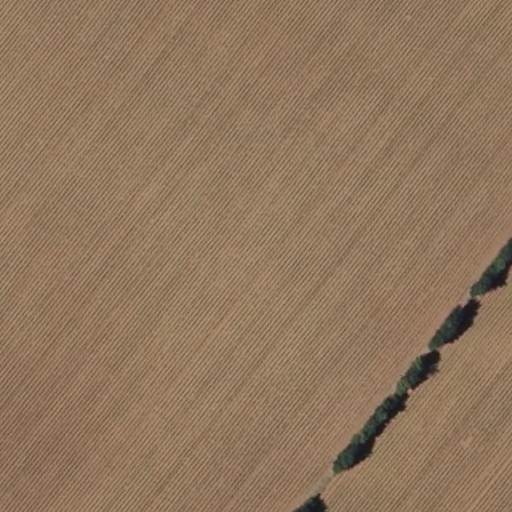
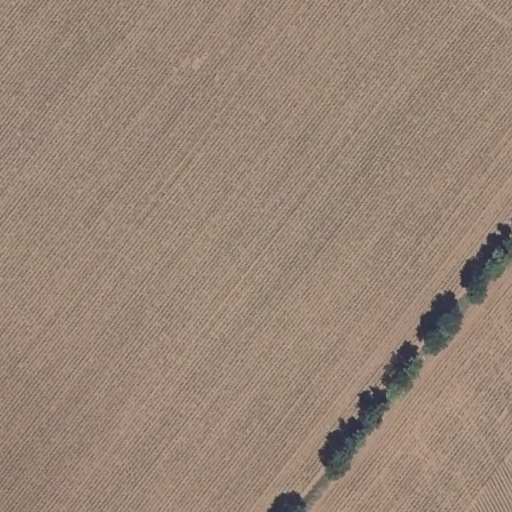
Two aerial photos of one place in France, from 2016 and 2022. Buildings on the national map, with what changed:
[]

